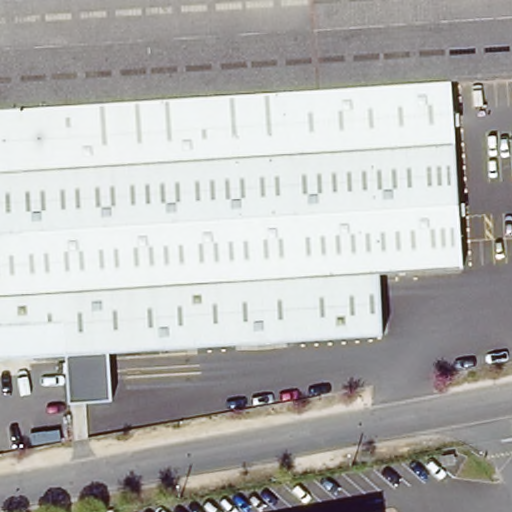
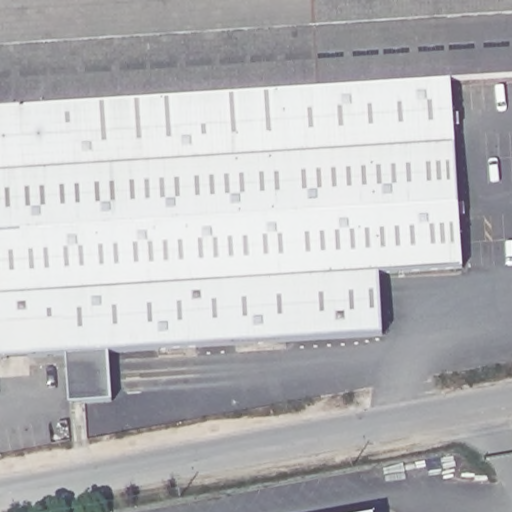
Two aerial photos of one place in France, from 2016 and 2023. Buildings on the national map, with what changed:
unchanged [(451,81),(465,271),(381,277),(385,335),(0,360),(0,0),(512,0),(512,77),(451,81)]
unchanged [(111,353),(114,401),(67,403),(66,356),(111,353)]

